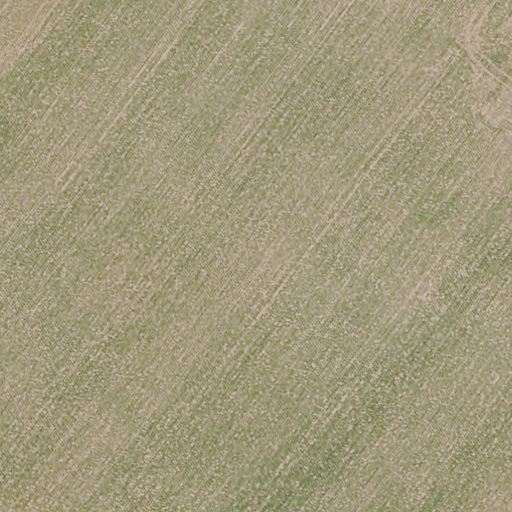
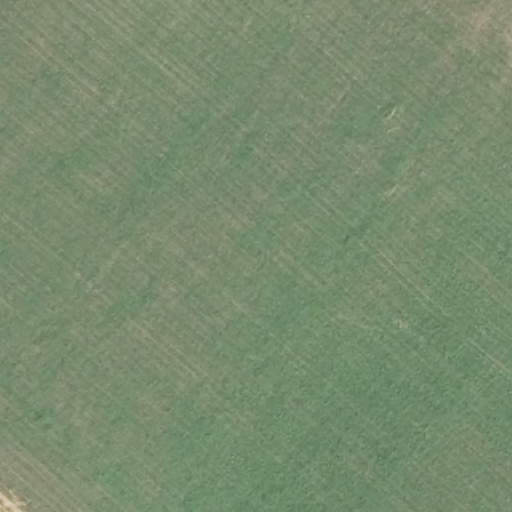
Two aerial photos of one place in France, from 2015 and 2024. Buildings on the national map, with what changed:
[]

